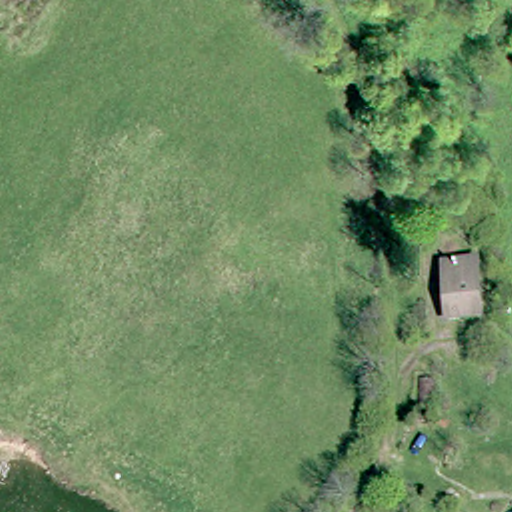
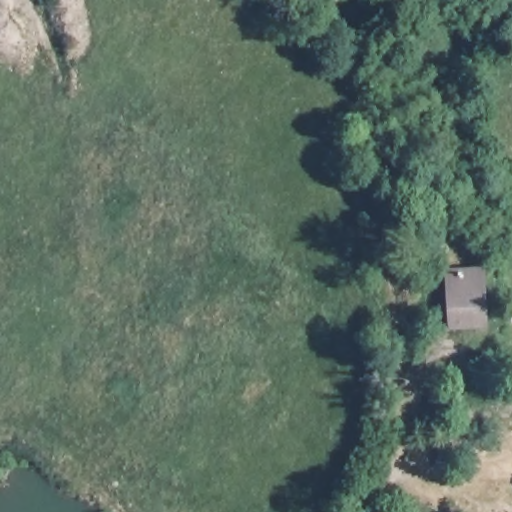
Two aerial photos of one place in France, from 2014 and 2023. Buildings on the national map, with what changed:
unchanged [(443,273),(477,272),(480,323),(453,325),(452,307),(445,308),(443,273)]

